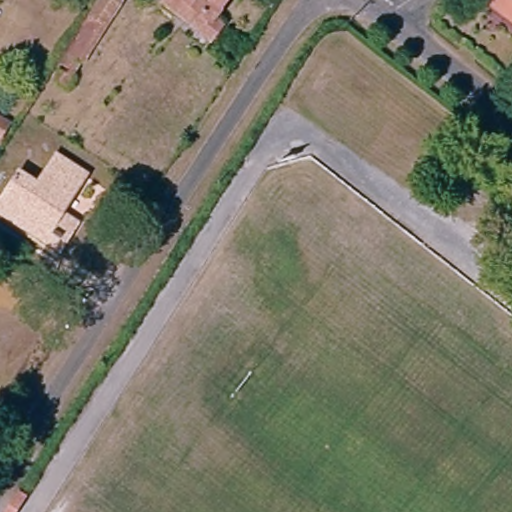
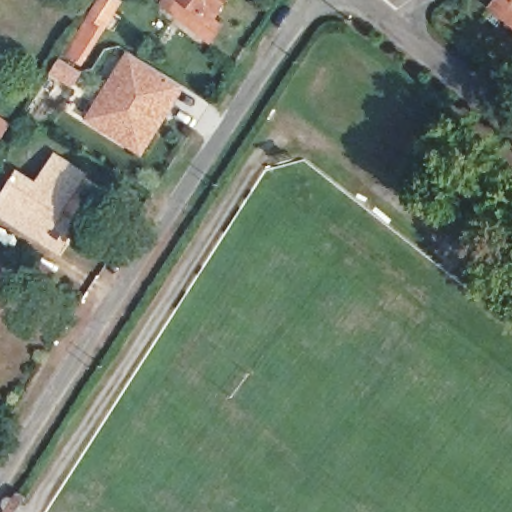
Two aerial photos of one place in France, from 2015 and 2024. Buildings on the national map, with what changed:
unchanged [(212,21),(221,29),(209,40),(160,0),(228,0),(212,21)]
unchanged [(491,0),(512,0),(512,24),(488,4),(491,0)]
unchanged [(98,2),(113,11),(106,19),(101,20),(63,77),(51,71),(53,69),(98,2)]
new [(188,88),(144,157),(85,121),(131,50),(188,88)]
unchanged [(0,126),(6,129),(0,139),(0,126)]
unchanged [(30,179),(49,151),(84,174),(60,211),(75,221),(53,252),(0,217),(0,188),(14,169),(30,179)]

